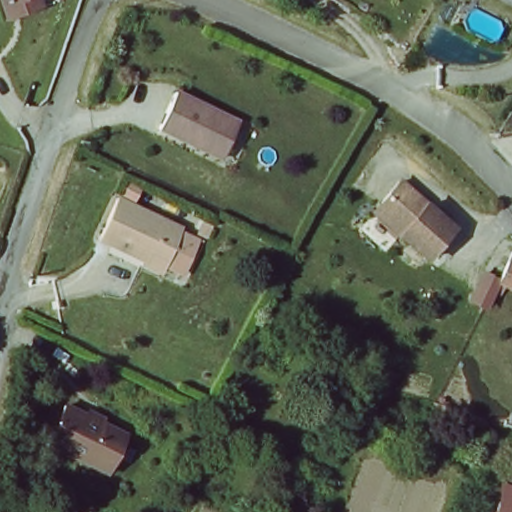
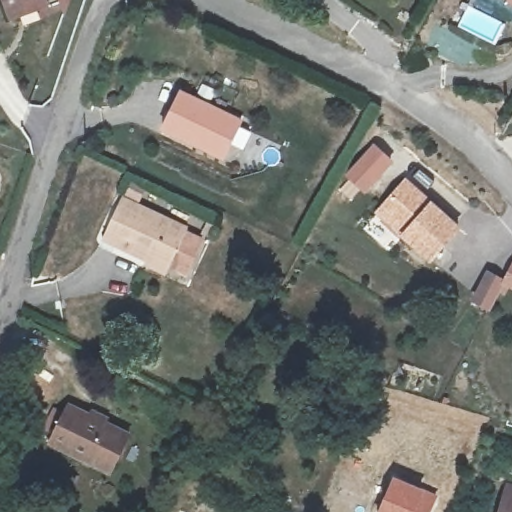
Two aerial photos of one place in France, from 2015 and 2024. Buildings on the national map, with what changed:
unchanged [(23,22),(17,10),(12,0),(49,0),(53,8),(23,22)]
unchanged [(185,91),(244,125),(227,155),(197,138),(194,142),(165,126),(185,91)]
unchanged [(138,205),(125,199),(134,184),(147,191),(138,205)]
unchanged [(450,227),(455,231),(432,256),(427,262),(400,239),(403,235),(391,224),(383,216),(382,207),(402,185),(409,191),(450,227)]
unchanged [(181,279),(165,270),(163,273),(104,239),(123,201),(186,236),(183,240),(199,247),(181,279)]
unchanged [(129,443),(108,478),(52,444),(72,410),(129,443)]
new [(439,495),(431,512),(377,512),(394,475),(439,495)]
unchanged [(512,487),(512,512),(500,512),(507,485),(512,487)]

